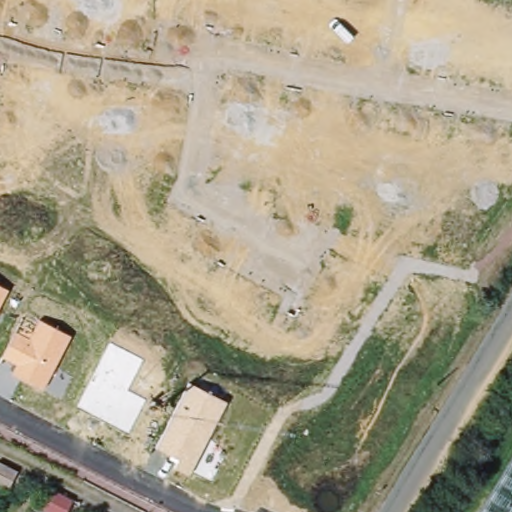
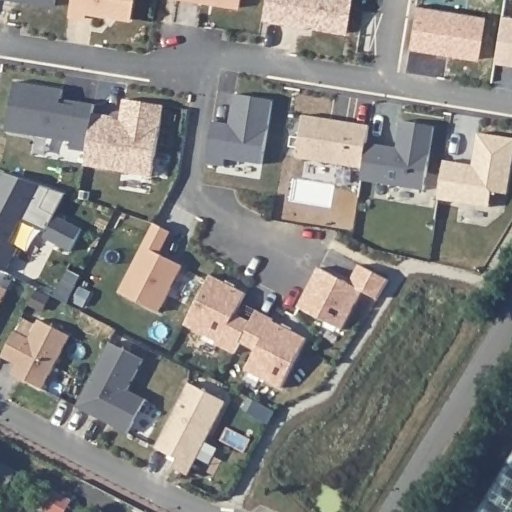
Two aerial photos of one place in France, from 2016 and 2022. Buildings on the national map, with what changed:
new [(9,0),(56,0),(55,7),(9,0)]
new [(134,0),(130,21),(86,14),(85,20),(68,17),(71,0),(134,0)]
new [(186,0),(240,0),(239,9),(186,0)]
new [(352,0),(346,34),(262,21),(266,0),(352,0)]
new [(416,7),(485,18),(478,60),(410,50),(416,7)]
new [(512,18),(512,66),(495,63),(502,16),(512,18)]
new [(64,90),(62,100),(79,102),(95,105),(94,114),(87,152),(71,150),(72,142),(7,132),(15,82),(64,90)]
new [(213,122),(230,125),(235,95),(273,101),(263,165),(226,159),(225,167),(206,164),(211,132),(213,122)]
new [(94,114),(114,117),(113,120),(121,121),(125,100),(165,106),(153,177),(85,166),(87,152),(94,114)]
new [(304,117),(370,127),(367,145),(363,169),(297,159),(304,117)]
new [(367,145),(381,147),(398,149),(402,122),(435,127),(425,191),(361,181),(363,169),(367,145)]
new [(474,166),(479,134),(512,139),(512,170),(508,195),(492,192),(490,208),(438,200),(445,162),(464,165),(474,166)]
new [(5,174),(52,190),(67,195),(55,217),(82,231),(71,253),(44,240),(47,234),(22,221),(10,245),(19,250),(7,273),(0,269),(0,185),(5,174)]
new [(155,225),(171,232),(159,255),(182,267),(159,313),(120,293),(155,225)]
new [(319,268),(350,284),(360,266),(390,281),(378,300),(362,292),(342,331),(299,308),(319,268)]
new [(211,276),(246,295),(236,315),(251,322),(241,342),(235,354),(219,346),(220,343),(185,326),(211,276)]
unchanged [(8,291),(0,307),(0,286),(8,291)]
new [(251,322),(257,311),(274,320),(273,322),(307,340),(282,389),(246,371),(257,351),(241,342),(251,322)]
unchanged [(17,364),(2,357),(15,331),(30,338),(40,320),(70,336),(41,389),(11,374),(17,364)]
new [(110,342),(144,360),(128,390),(146,400),(129,433),(77,407),(110,342)]
unchanged [(191,383),(226,402),(188,476),(172,468),(177,459),(156,450),(191,383)]
unchanged [(512,460),(512,512),(480,512),(512,460)]
unchanged [(72,500),(66,512),(46,512),(39,508),(50,488),(72,500)]

